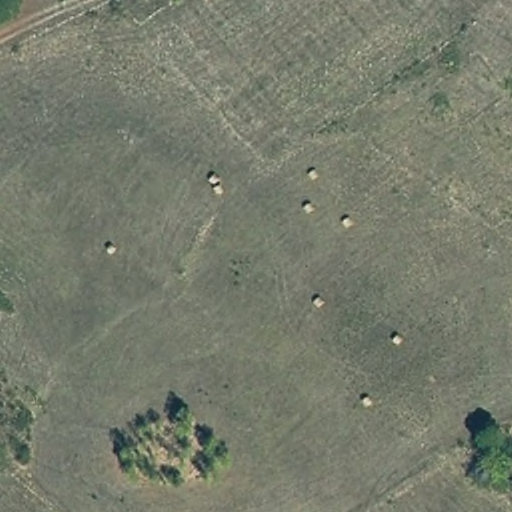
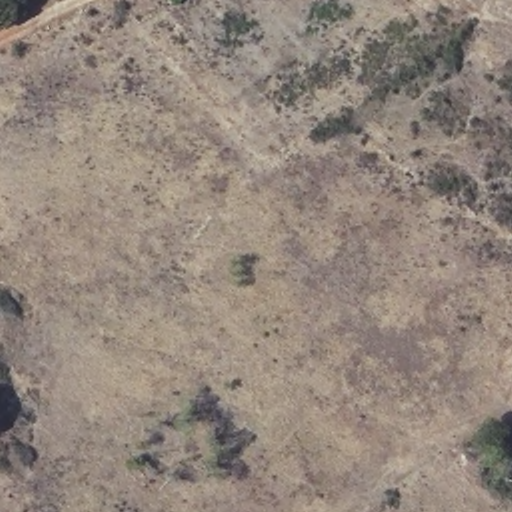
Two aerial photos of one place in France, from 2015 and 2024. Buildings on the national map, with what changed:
unchanged [(512,469),(512,484),(507,483),(512,469)]

